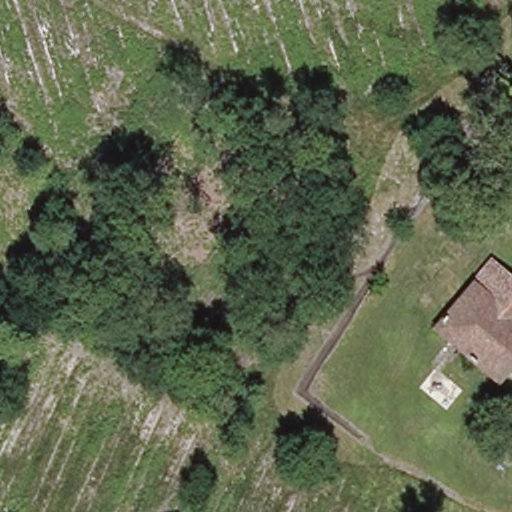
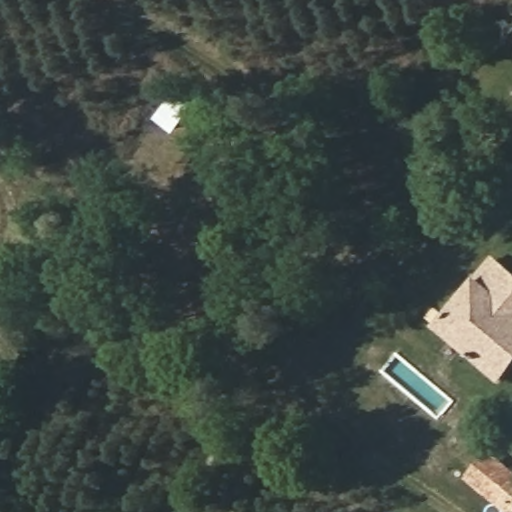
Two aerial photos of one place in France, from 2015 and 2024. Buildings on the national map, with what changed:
unchanged [(409,271),(393,258),(406,242),(422,254),(409,271)]
unchanged [(447,319),(487,260),(512,277),(512,362),(503,374),(438,330),(447,319)]
new [(489,452),(512,471),(512,512),(502,512),(465,481),(489,452)]

